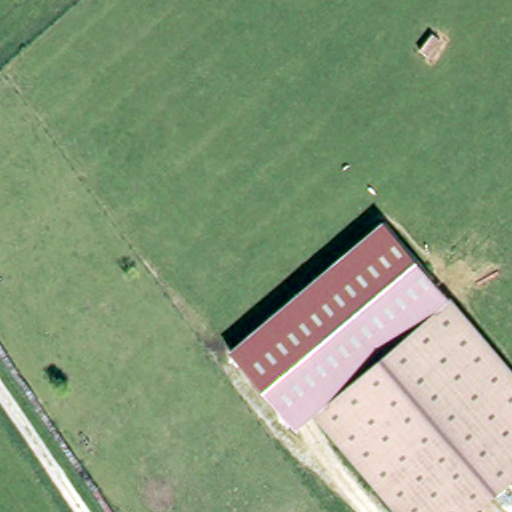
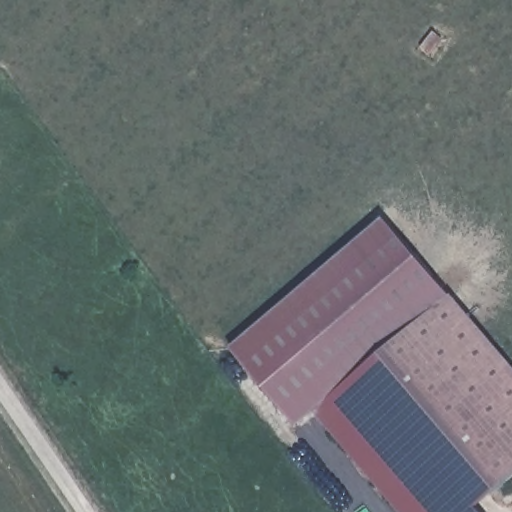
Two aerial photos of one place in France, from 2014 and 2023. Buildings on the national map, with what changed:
unchanged [(297,430),(231,348),(385,217),(455,298),(320,413),(297,430)]
unchanged [(480,510),(481,512),(401,512),(320,413),(455,298),(512,368),(512,482),(480,510)]

